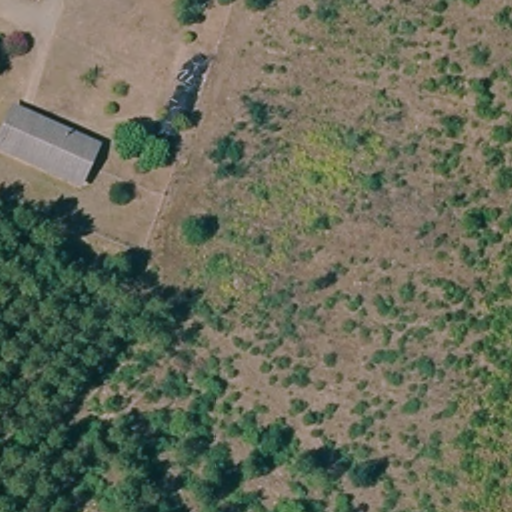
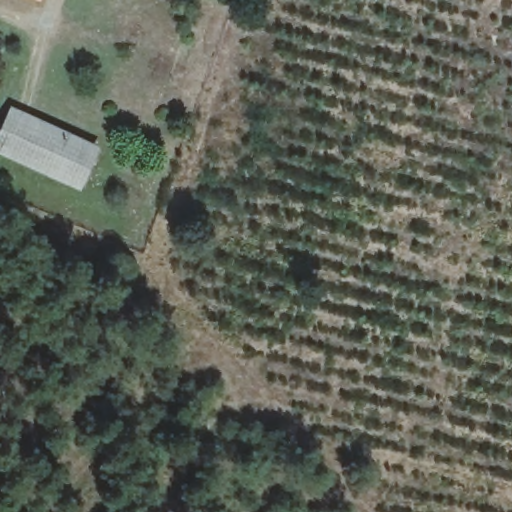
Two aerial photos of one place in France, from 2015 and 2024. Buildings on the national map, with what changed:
unchanged [(79,186),(0,149),(0,128),(10,106),(97,146),(79,186)]

